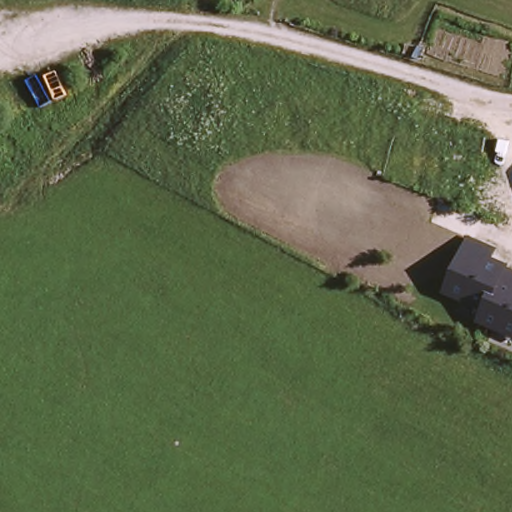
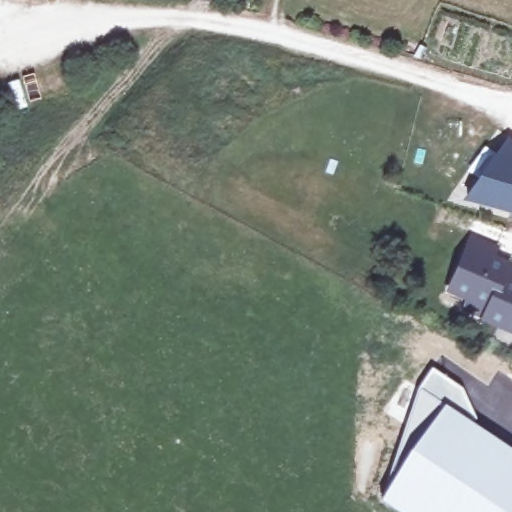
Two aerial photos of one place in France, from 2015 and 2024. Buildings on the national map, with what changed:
new [(468,197),(510,140),(512,141),(512,210),(468,197)]
unchanged [(507,264),(501,276),(512,280),(512,327),(484,316),(489,304),(450,287),(467,247),(507,264)]
new [(392,468),(412,398),(430,366),(462,387),(475,417),(470,420),(443,404),(392,472),(392,468)]
new [(443,404),(470,420),(475,417),(482,428),(512,448),(512,512),(395,512),(377,500),(392,472),(443,404)]

